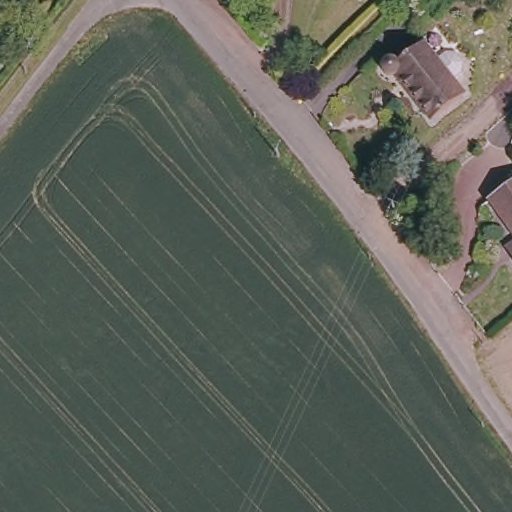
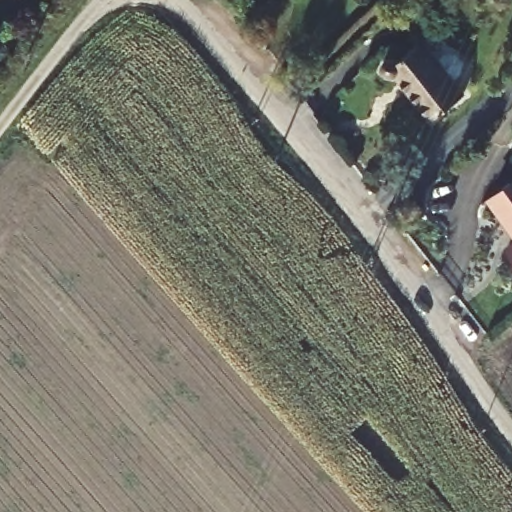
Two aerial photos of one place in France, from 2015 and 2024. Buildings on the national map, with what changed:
unchanged [(464,94),(432,117),(398,71),(394,71),(391,70),(389,66),(389,63),(390,60),(394,57),(397,58),(400,59),(425,41),(464,94)]
unchanged [(491,195),(512,179),(512,222),(491,195)]
unchanged [(509,245),(512,242),(512,248),(509,245)]

